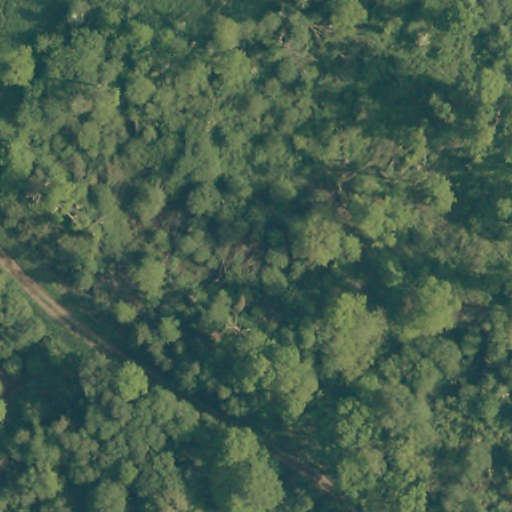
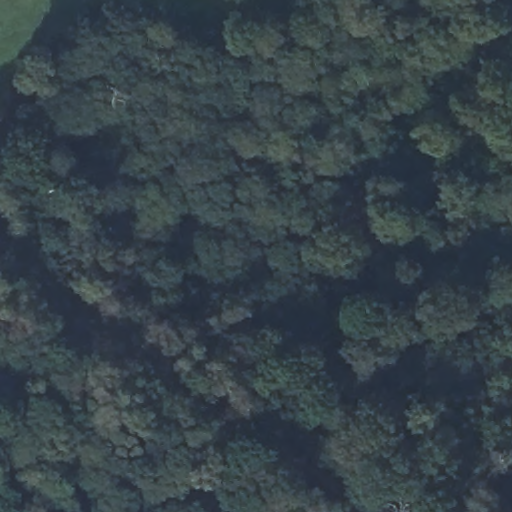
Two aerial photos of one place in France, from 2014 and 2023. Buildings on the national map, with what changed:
[]

